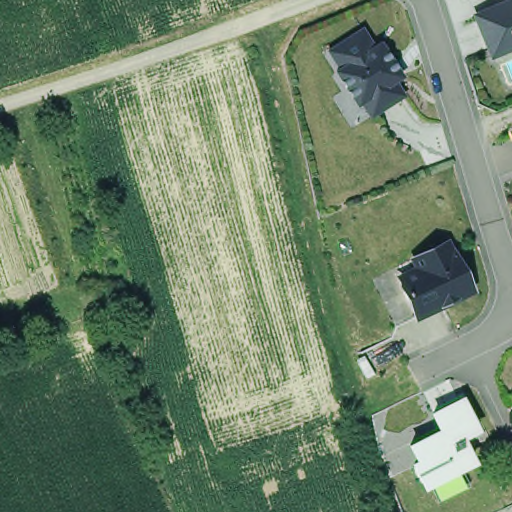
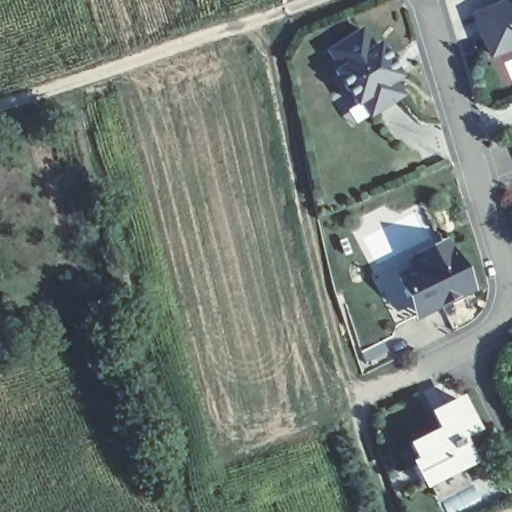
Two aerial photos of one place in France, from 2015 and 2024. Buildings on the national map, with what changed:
unchanged [(510,0),(512,0),(512,55),(493,63),(474,15),(510,0)]
unchanged [(374,36),(383,33),(408,80),(403,84),(410,96),(370,120),(363,108),(358,110),(335,72),(340,68),(328,46),(366,21),(374,36)]
unchanged [(408,268),(404,259),(448,239),(453,252),(459,251),(474,295),(417,322),(396,275),(408,268)]
unchanged [(418,461),(410,444),(437,430),(430,412),(464,396),(480,432),(466,439),(475,464),(423,490),(411,464),(418,461)]

